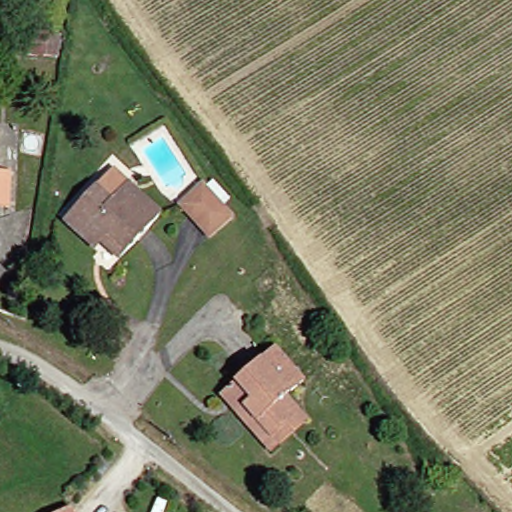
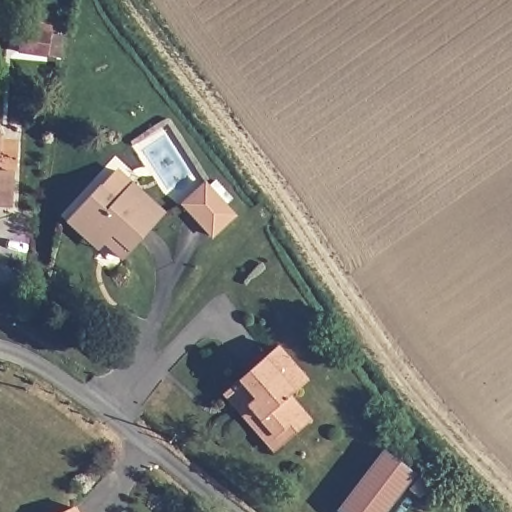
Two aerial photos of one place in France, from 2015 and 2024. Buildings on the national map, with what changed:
unchanged [(59,61),(15,56),(14,31),(60,33),(59,61)]
unchanged [(14,208),(0,208),(0,171),(14,171),(14,208)]
unchanged [(71,225),(78,218),(104,190),(119,203),(134,187),(165,216),(131,251),(124,260),(106,244),(99,252),(71,225)]
unchanged [(213,239),(195,218),(187,207),(209,188),(219,199),(236,219),(213,239)]
unchanged [(307,383),(290,398),(304,412),(278,438),(250,409),(258,402),(240,384),(277,351),(307,383)]
unchanged [(258,402),(250,409),(278,438),(304,412),(312,421),(276,452),(226,398),(240,384),(258,402)]
new [(414,474),(385,512),(338,512),(337,511),(383,451),(414,474)]
unchanged [(83,512),(67,512),(80,506),(83,512)]

